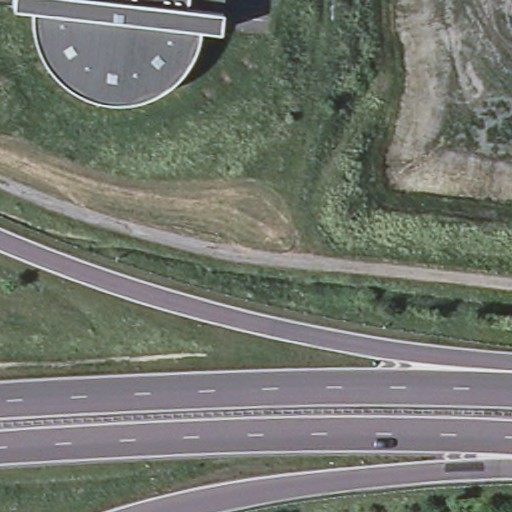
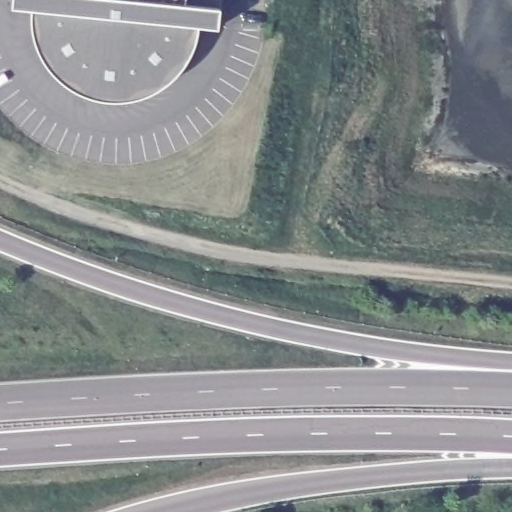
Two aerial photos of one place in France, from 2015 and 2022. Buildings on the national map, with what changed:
unchanged [(154,85),(145,90),(137,92),(127,94),(120,95),(113,95),(104,94),(97,93),(90,91),(80,88),(72,84),(65,79),(59,74),(52,69),(49,64),(44,57),(40,50),(37,46),(35,40),(32,34),(31,27),(30,20),(29,10),(9,9),(10,0),(220,0),(220,9),(217,29),(197,27),(196,33),(194,39),(191,46),(186,56),(176,69),(166,77),(154,85)]

